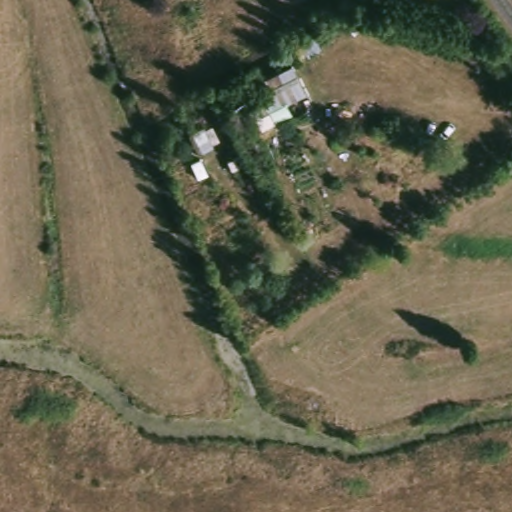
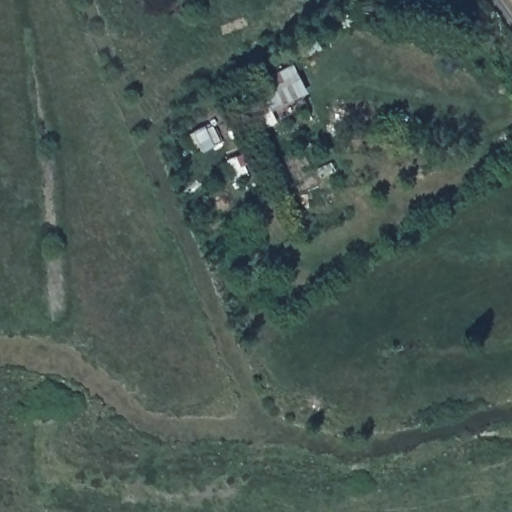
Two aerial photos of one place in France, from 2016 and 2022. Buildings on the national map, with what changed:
unchanged [(307,95),(258,137),(241,102),(290,64),(307,95)]

